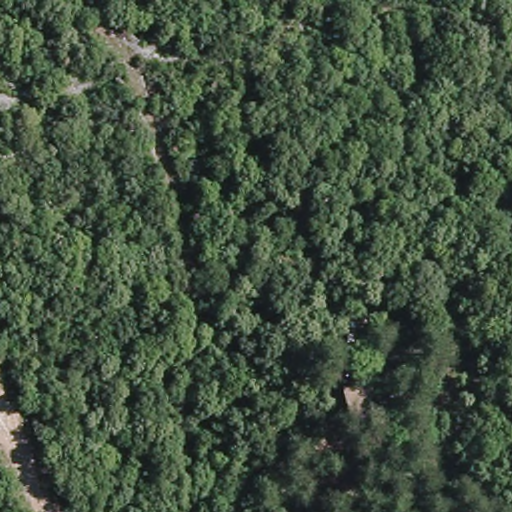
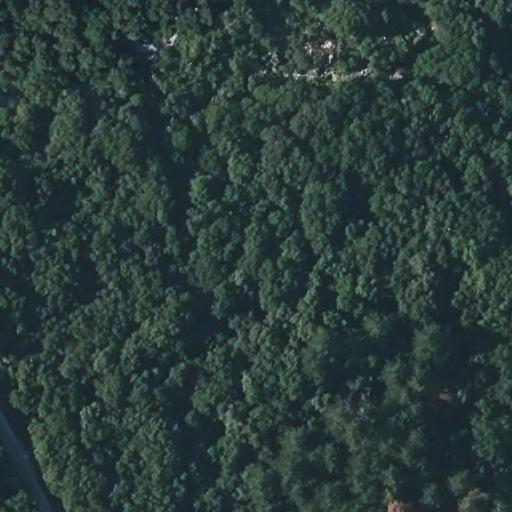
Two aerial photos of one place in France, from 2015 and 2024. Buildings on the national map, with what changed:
unchanged [(372,402),(373,426),(345,426),(344,401),(372,402)]

